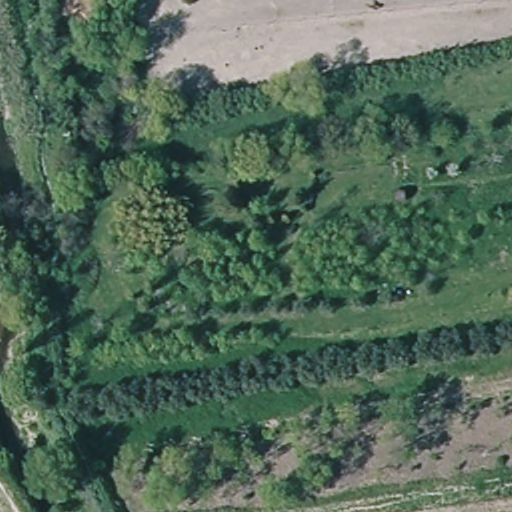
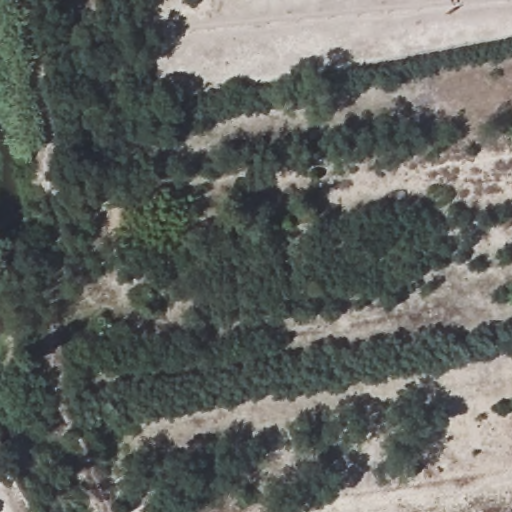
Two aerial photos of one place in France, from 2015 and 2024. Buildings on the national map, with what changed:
[]

